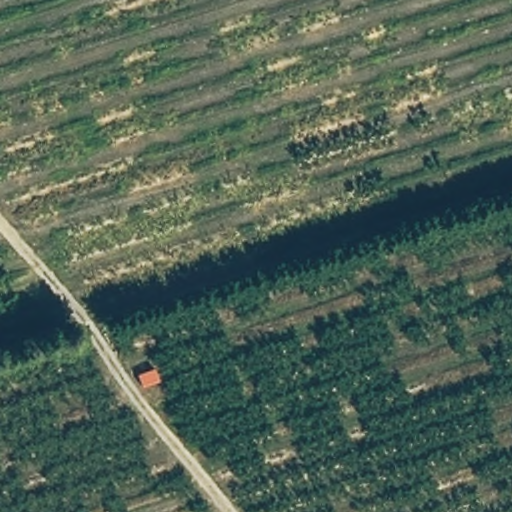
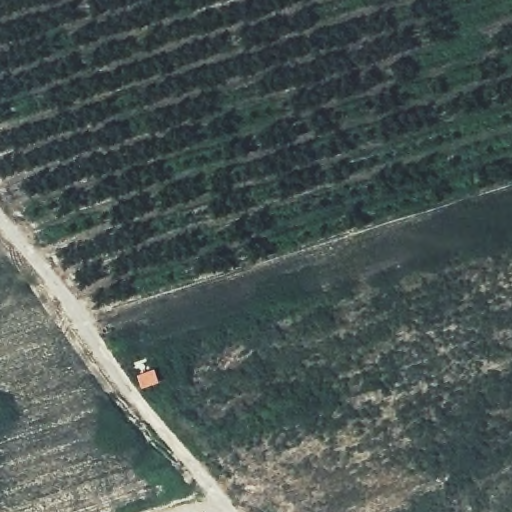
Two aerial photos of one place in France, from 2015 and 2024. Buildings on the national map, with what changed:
unchanged [(157,369),(161,382),(142,388),(138,374),(157,369)]

